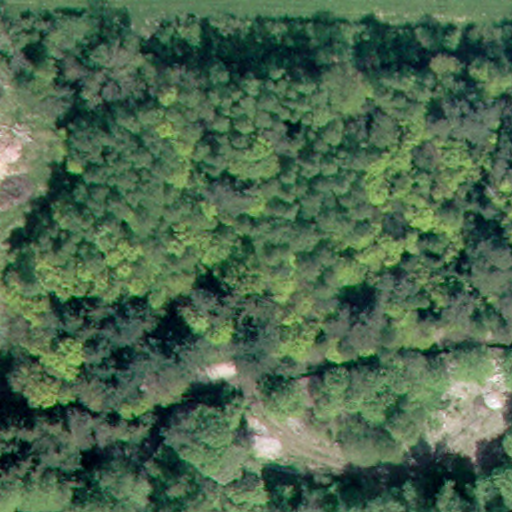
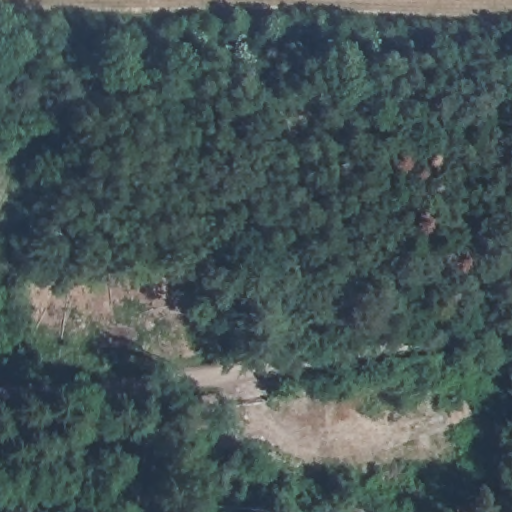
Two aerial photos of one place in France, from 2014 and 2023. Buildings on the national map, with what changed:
unchanged [(181,425),(176,406),(201,403),(204,421),(181,425)]

